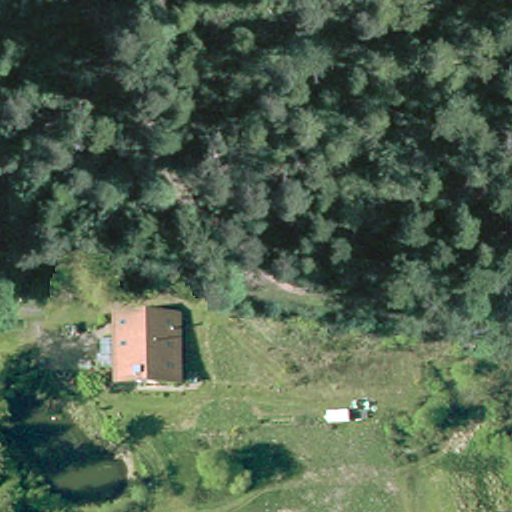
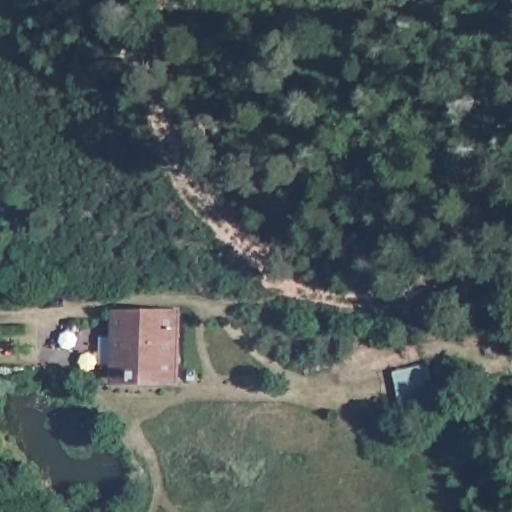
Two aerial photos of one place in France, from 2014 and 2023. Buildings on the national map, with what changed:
unchanged [(175,307),(175,379),(117,381),(116,312),(175,307)]

